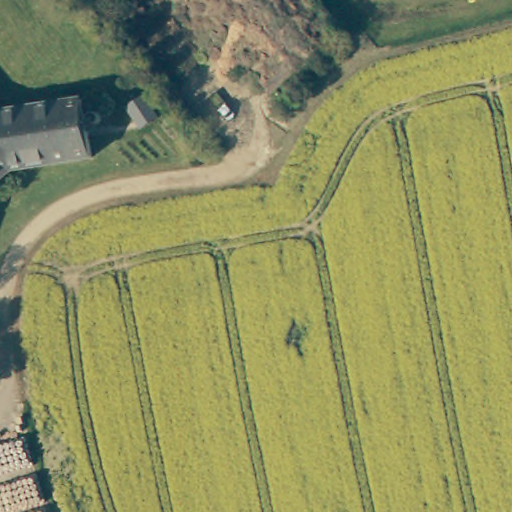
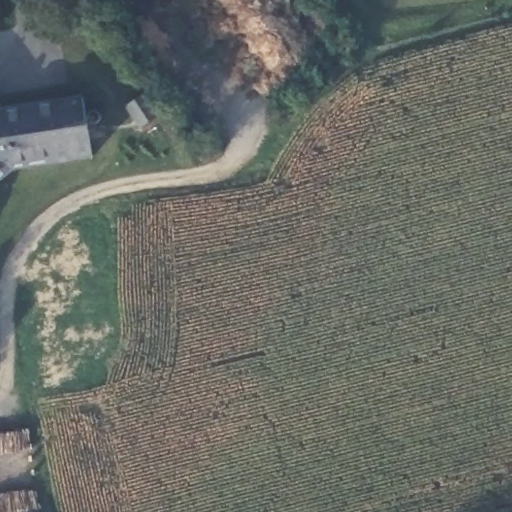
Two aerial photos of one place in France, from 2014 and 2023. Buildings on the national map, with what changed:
unchanged [(85,157),(6,169),(0,174),(0,111),(4,111),(79,100),(85,157)]

